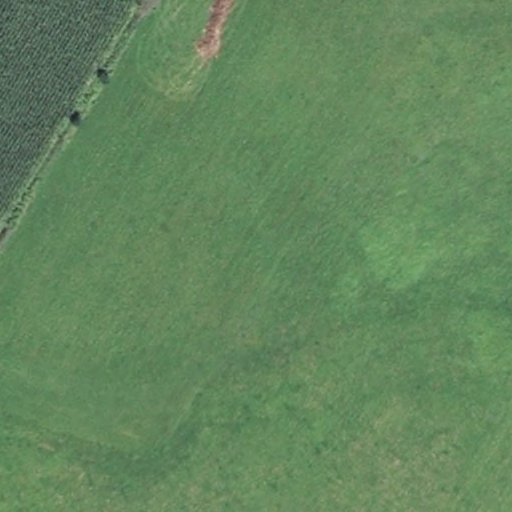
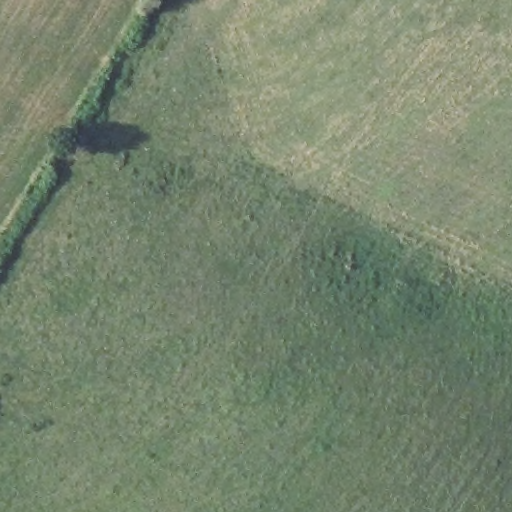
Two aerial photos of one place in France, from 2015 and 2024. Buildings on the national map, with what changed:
[]

